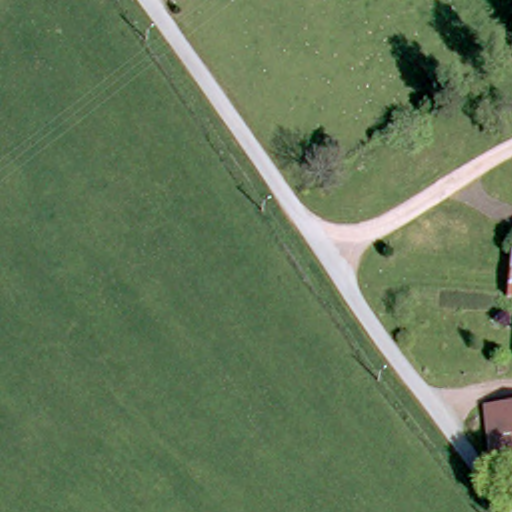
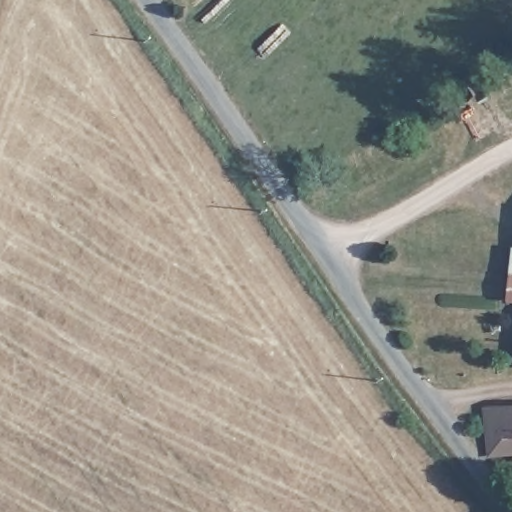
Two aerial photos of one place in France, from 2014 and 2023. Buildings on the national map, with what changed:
unchanged [(511,306),(512,297),(512,306),(511,306)]
unchanged [(512,449),(485,452),(480,407),(512,404),(512,453),(512,449)]

